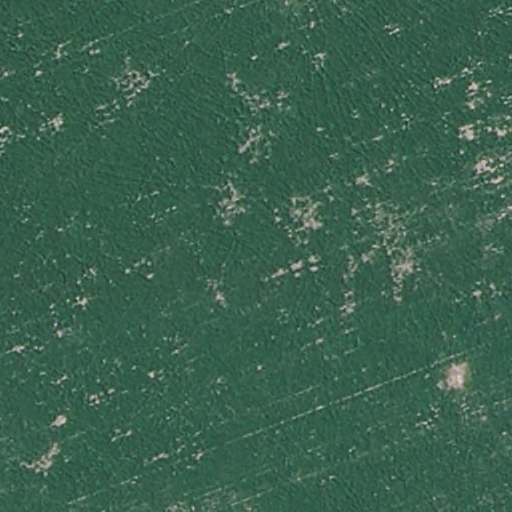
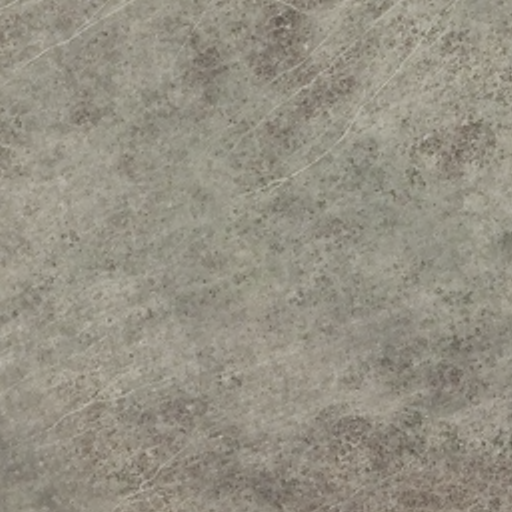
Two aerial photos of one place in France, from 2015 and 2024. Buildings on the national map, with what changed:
[]

